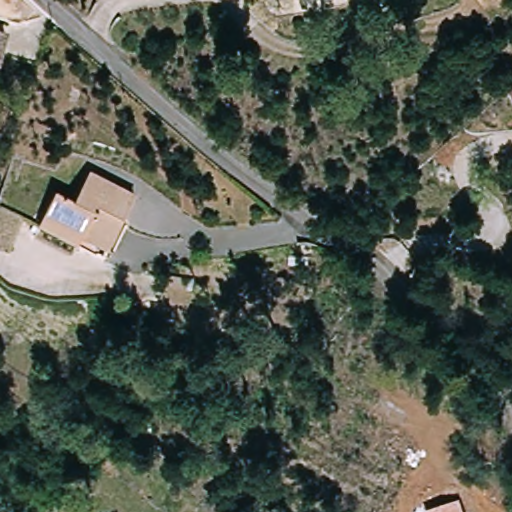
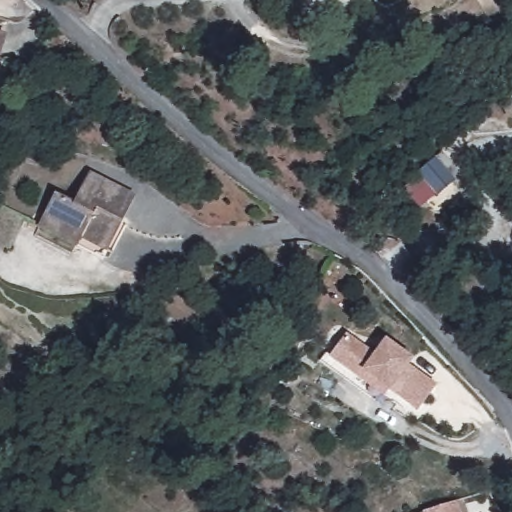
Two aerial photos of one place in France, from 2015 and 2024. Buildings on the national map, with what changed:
unchanged [(0,63),(0,27),(14,32),(0,63)]
new [(454,156),(471,177),(455,190),(438,170),(454,156)]
unchanged [(136,191),(109,241),(45,211),(54,194),(74,204),(91,170),(136,191)]
unchanged [(109,241),(100,257),(38,227),(45,211),(109,241)]
new [(375,353),(386,338),(414,360),(410,365),(437,386),(417,412),(388,391),(384,397),(380,405),(320,361),(327,351),(332,354),(347,333),(375,353)]
unchanged [(462,512),(423,512),(457,501),(462,512)]

